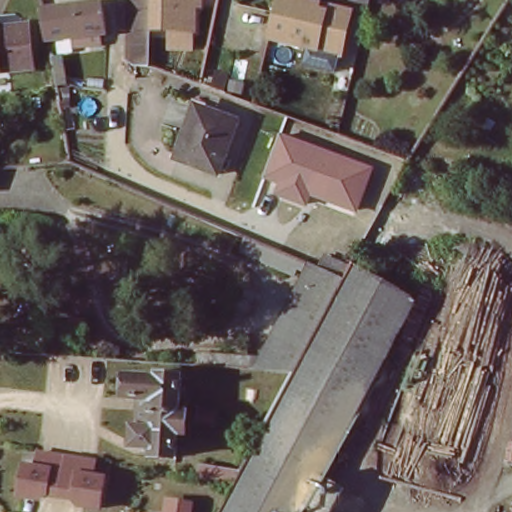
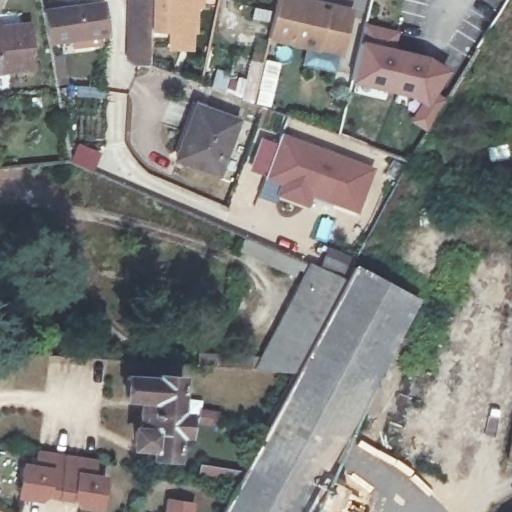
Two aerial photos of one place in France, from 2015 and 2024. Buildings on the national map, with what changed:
unchanged [(45,40),(40,9),(99,0),(104,30),(89,32),(91,42),(73,45),(71,35),(45,40)]
unchanged [(133,61),(127,55),(127,54),(130,0),(150,0),(148,62),(133,61)]
unchanged [(195,11),(195,52),(168,51),(168,32),(149,30),(150,0),(205,0),(205,11),(195,11)]
unchanged [(288,0),(321,8),(360,16),(350,60),(312,50),(272,41),(282,0),(288,0)]
new [(399,32),(395,49),(428,56),(449,72),(436,92),(447,100),(427,132),(409,120),(420,102),(407,96),(350,84),(361,40),(365,22),(399,32)]
unchanged [(31,35),(35,76),(0,79),(0,38),(31,35)]
unchanged [(70,83),(57,85),(53,54),(66,52),(70,83)]
unchanged [(261,85),(257,102),(215,86),(208,84),(210,67),(261,85)]
unchanged [(205,106),(239,120),(217,172),(178,155),(185,137),(190,139),(205,106)]
unchanged [(358,212),(310,195),(307,207),(275,195),(279,184),(263,179),(280,133),(373,168),(358,212)]
unchanged [(240,470),(265,426),(295,372),(267,370),(255,370),(201,365),(201,352),(263,355),(305,279),(300,276),(298,278),(242,254),(249,238),(305,263),(312,266),(320,270),(327,255),(352,266),(353,265),(421,304),(325,477),(305,512),(217,512),(233,483),(198,478),(201,464),(240,470)]
unchanged [(205,276),(220,277),(219,292),(205,290),(205,276)]
unchanged [(180,374),(179,401),(185,402),(184,428),(176,427),(174,459),(150,456),(150,450),(129,448),(130,425),(138,425),(140,398),(121,397),(122,373),(152,376),(153,371),(180,374)]
unchanged [(193,407),(216,409),(215,424),(192,423),(193,407)]
unchanged [(512,439),(512,462),(508,461),(512,439)]
unchanged [(99,460),(96,473),(111,475),(106,510),(81,506),(76,501),(48,497),(47,501),(20,498),(25,465),(36,465),(38,450),(99,460)]
unchanged [(325,477),(341,486),(327,512),(305,512),(325,477)]
unchanged [(194,502),(192,512),(165,512),(167,499),(194,502)]

